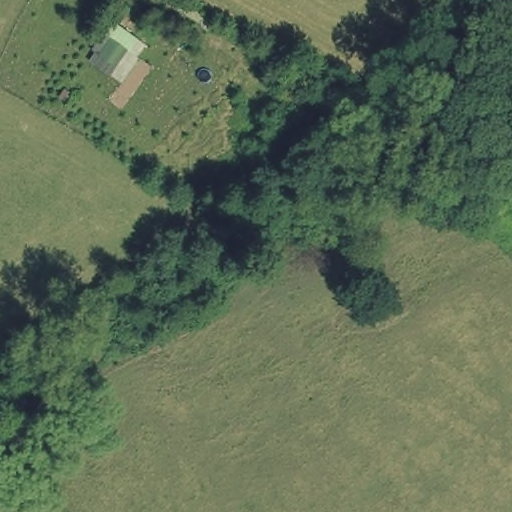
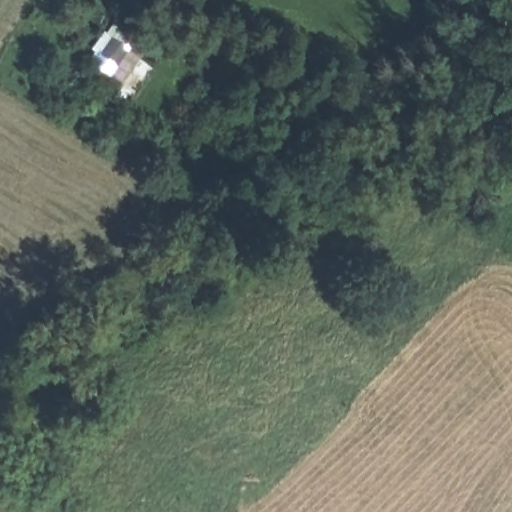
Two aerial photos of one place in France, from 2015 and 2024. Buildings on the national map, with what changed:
unchanged [(112,69),(96,58),(110,38),(128,50),(112,69)]

